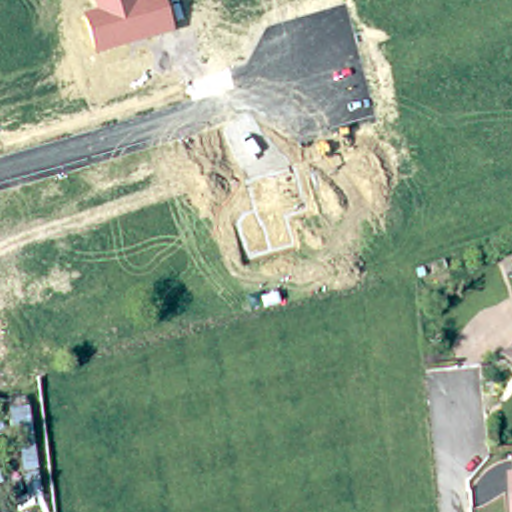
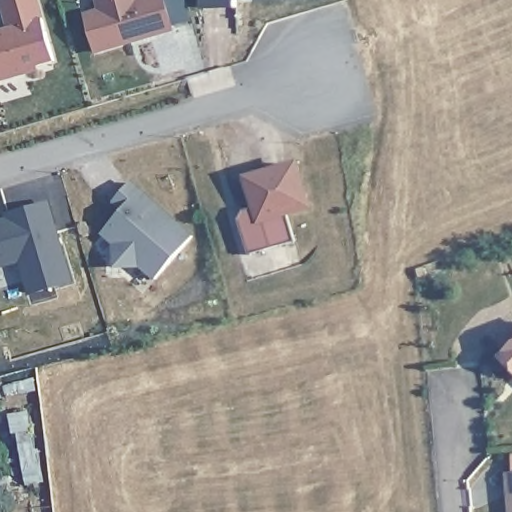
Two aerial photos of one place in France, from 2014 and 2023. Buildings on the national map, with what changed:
new [(54,63),(38,68),(40,73),(0,83),(0,29),(5,28),(0,7),(0,0),(38,0),(41,20),(54,63)]
unchanged [(94,0),(163,0),(173,33),(95,55),(83,14),(97,10),(94,0)]
new [(301,1),(236,3),(236,11),(201,9),(201,0),(301,0),(301,1)]
new [(251,210),(242,176),(298,160),(311,209),(286,217),(294,242),(248,255),(238,218),(243,211),(251,210)]
new [(193,236),(153,280),(138,268),(113,267),(112,245),(101,233),(119,211),(111,203),(131,180),(193,236)]
new [(3,214),(49,202),(73,283),(27,295),(18,263),(0,268),(0,220),(3,219),(3,214)]
unchanged [(508,354),(512,350),(512,359),(508,354)]
unchanged [(42,493),(25,495),(6,401),(25,398),(42,493)]
unchanged [(0,507),(0,474),(7,505),(0,507)]
unchanged [(511,492),(512,492),(512,503),(511,492)]

